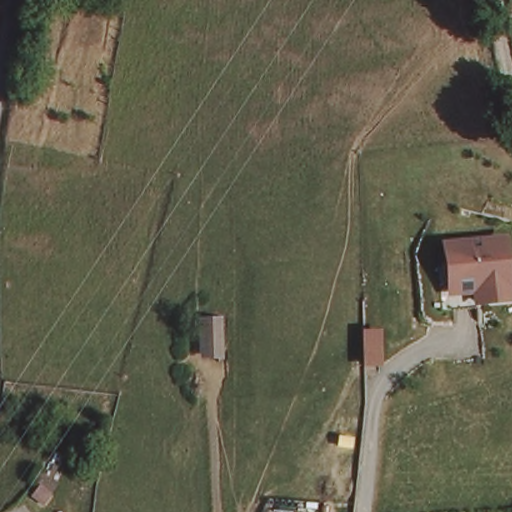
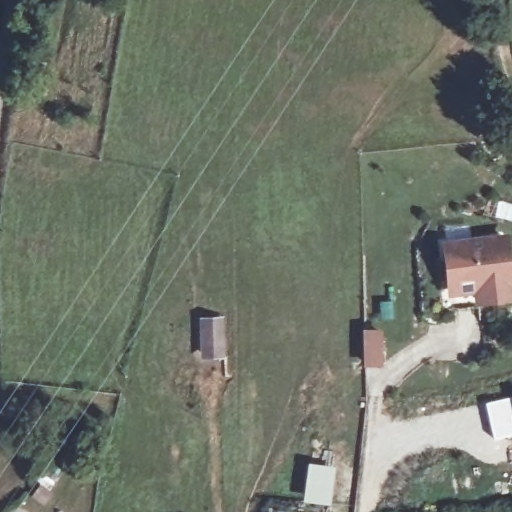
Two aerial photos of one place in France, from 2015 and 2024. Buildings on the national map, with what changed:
unchanged [(447,303),(445,282),(454,281),(452,237),(512,234),(512,241),(512,294),(482,295),(482,301),(447,303)]
unchanged [(222,318),(223,356),(200,358),(199,320),(222,318)]
new [(512,395),(512,435),(492,440),(483,401),(512,395)]

